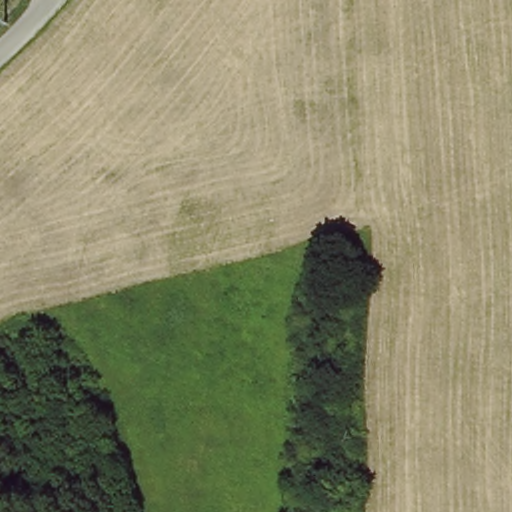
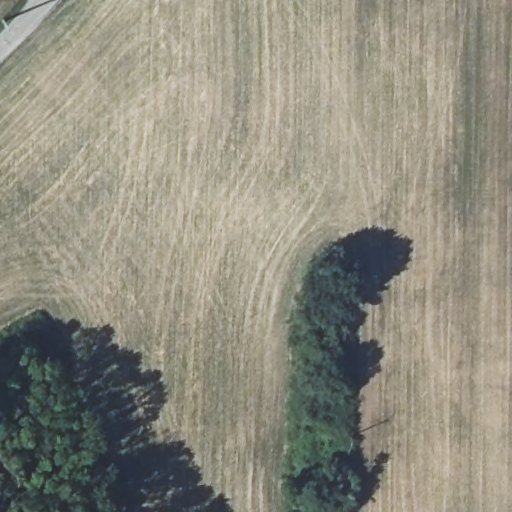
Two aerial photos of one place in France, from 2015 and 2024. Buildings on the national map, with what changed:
[]

